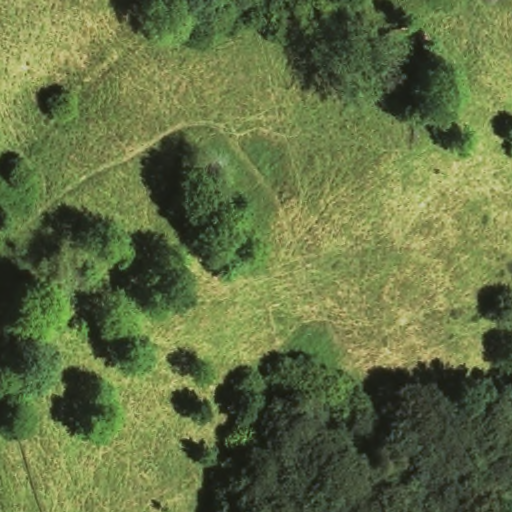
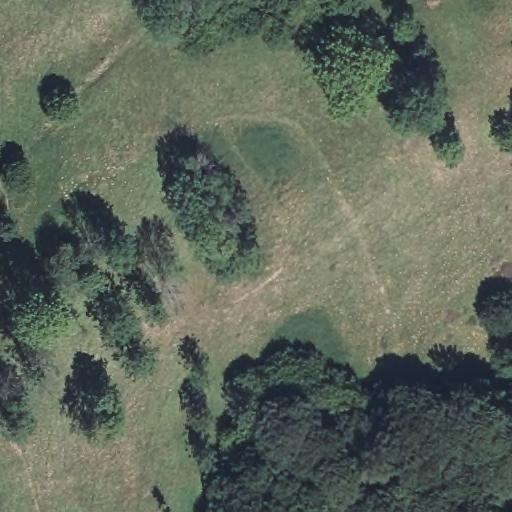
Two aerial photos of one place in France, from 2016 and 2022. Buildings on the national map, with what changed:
unchanged [(0,216),(10,226),(0,234),(0,216)]

